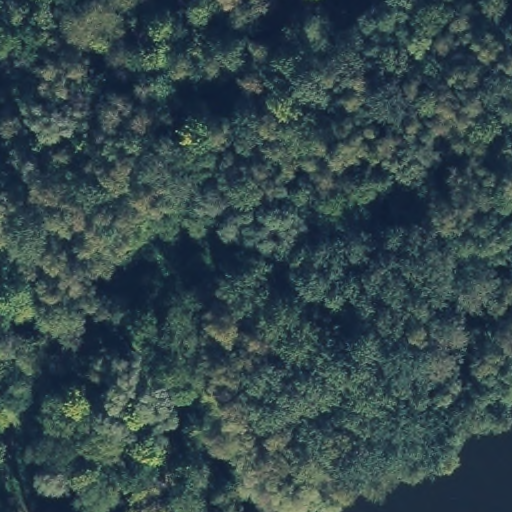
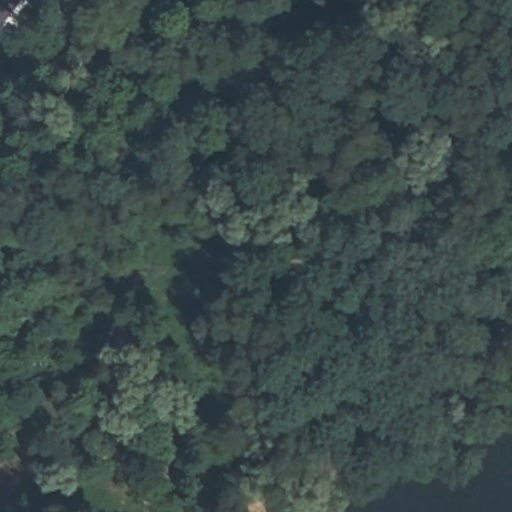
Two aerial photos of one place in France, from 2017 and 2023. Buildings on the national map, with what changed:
[]

